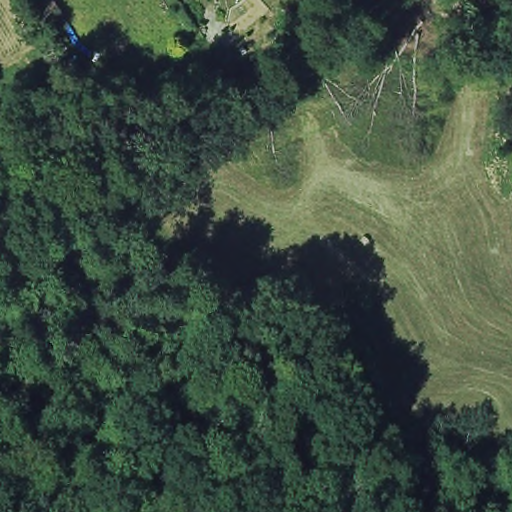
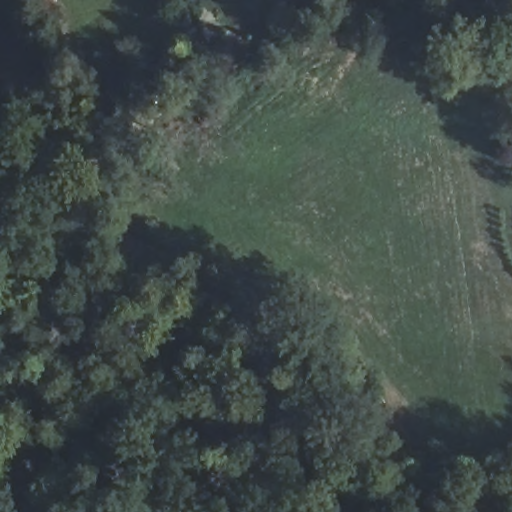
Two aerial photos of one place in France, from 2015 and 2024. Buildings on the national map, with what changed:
unchanged [(37,0),(55,0),(61,7),(48,16),(37,0)]

